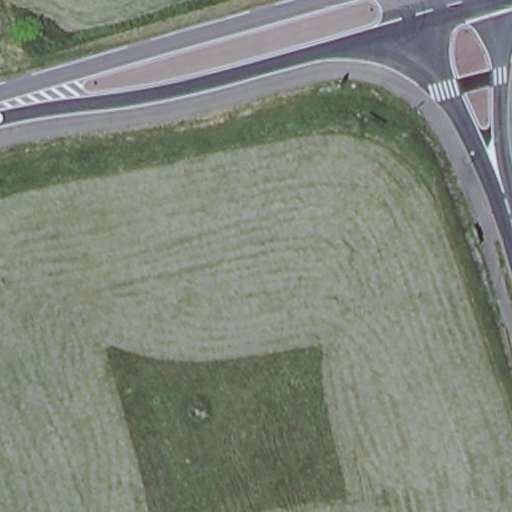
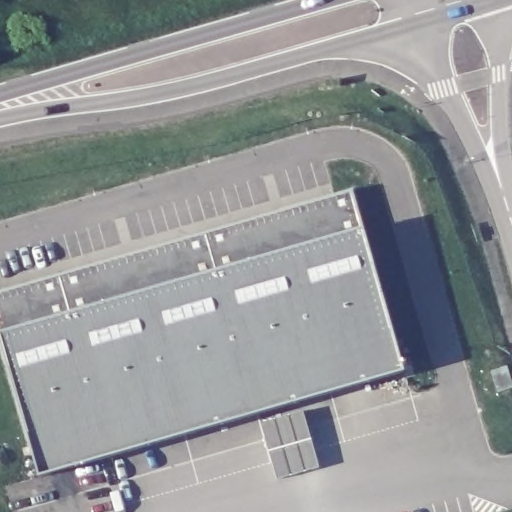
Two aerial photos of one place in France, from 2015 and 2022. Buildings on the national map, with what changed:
new [(0,292),(353,189),(365,228),(404,370),(39,477),(0,340),(0,292)]
new [(305,413),(319,468),(278,480),(262,424),(305,413)]

